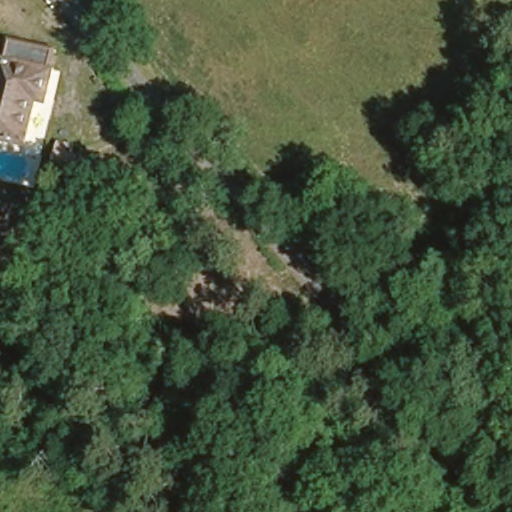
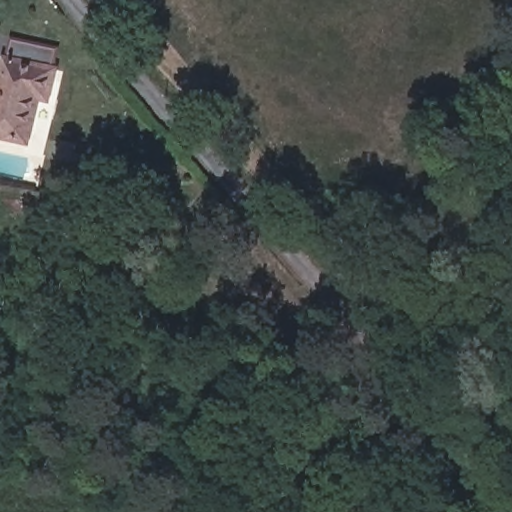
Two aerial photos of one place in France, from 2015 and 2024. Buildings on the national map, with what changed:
unchanged [(55,68),(49,98),(36,96),(25,143),(0,137),(0,56),(55,68)]

